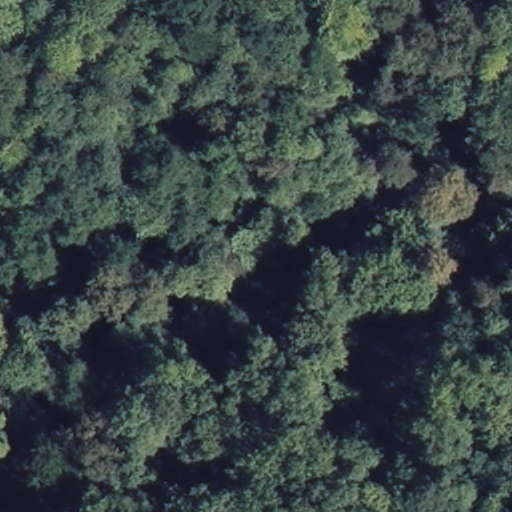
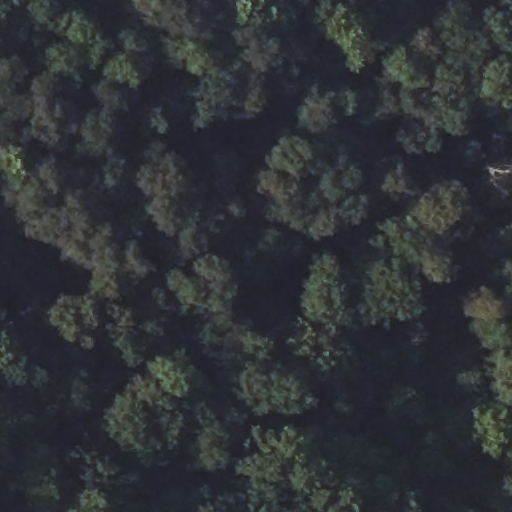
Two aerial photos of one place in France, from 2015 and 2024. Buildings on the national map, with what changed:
unchanged [(405,385),(435,414),(417,432),(388,402),(405,385)]

